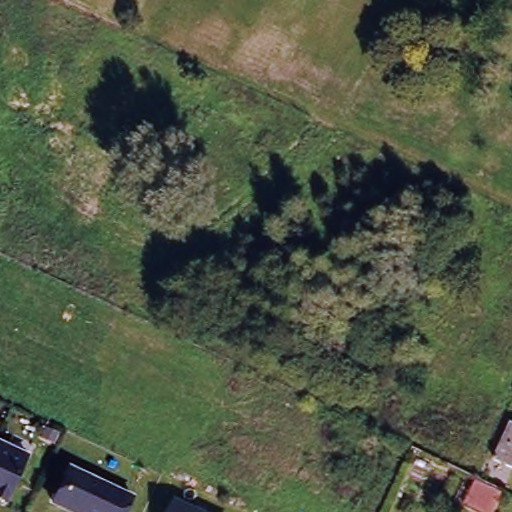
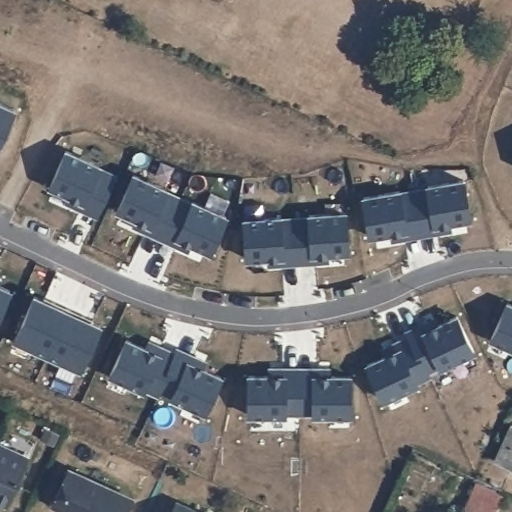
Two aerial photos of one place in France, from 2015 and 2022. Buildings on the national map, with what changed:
new [(11,108),(0,133),(0,103),(11,108)]
new [(63,150),(97,165),(96,167),(112,174),(96,208),(80,200),(77,207),(63,201),(66,194),(46,185),(63,150)]
new [(131,174),(165,190),(164,191),(177,197),(162,231),(149,225),(146,232),(132,225),(135,219),(115,210),(131,174)]
new [(419,227),(413,190),(426,188),(426,186),(463,180),(469,218),(448,222),(449,229),(434,232),(433,224),(419,227)]
new [(362,196),(399,190),(399,192),(413,190),(419,227),(405,229),(406,236),(391,239),(390,231),(368,235),(362,196)]
new [(177,197),(190,203),(191,201),(224,216),(208,251),(189,243),(186,250),(171,243),(174,236),(162,231),(177,197)]
new [(326,252),(326,259),(311,260),(310,253),(296,254),(294,217),(308,216),(308,214),(344,211),(347,250),(326,252)]
new [(280,216),(280,218),(294,217),(296,254),(282,254),(283,262),(267,263),(267,256),(245,257),(243,218),(280,216)]
new [(6,289),(0,303),(0,287),(6,289)]
new [(11,339),(31,295),(47,302),(48,300),(65,308),(43,354),(11,339)]
new [(512,306),(512,349),(488,338),(504,302),(512,306)]
new [(81,315),(80,318),(97,325),(76,369),(43,354),(65,308),(81,315)]
new [(408,337),(420,331),(417,325),(431,318),(434,324),(453,315),(470,351),(437,367),(436,365),(424,371),(410,342),(408,337)]
new [(124,339),(144,347),(146,341),(160,348),(157,354),(171,360),(156,394),(142,388),(142,390),(108,375),(124,339)]
new [(364,364),(383,354),(380,348),(394,341),(397,348),(410,341),(426,375),(413,381),(414,383),(380,399),(364,364)]
new [(173,356),(185,361),(188,355),(202,361),(199,368),(219,376),(203,412),(169,397),(170,395),(158,389),(171,360),(173,356)]
new [(246,375),(268,375),(268,368),(298,368),(298,412),(284,412),(284,414),(246,414),(246,375)]
new [(349,375),(349,414),(312,414),(312,412),(298,412),(298,368),(327,368),(327,375),(349,375)]
unchanged [(509,422),(512,424),(512,463),(510,467),(492,458),(509,422)]
unchanged [(31,455),(7,506),(0,503),(0,441),(31,455)]
unchanged [(127,512),(64,512),(50,505),(68,466),(134,496),(127,512)]
unchanged [(175,499),(203,512),(169,512),(175,499)]

